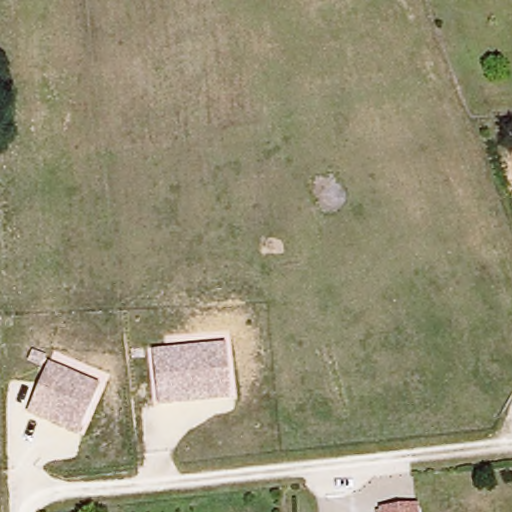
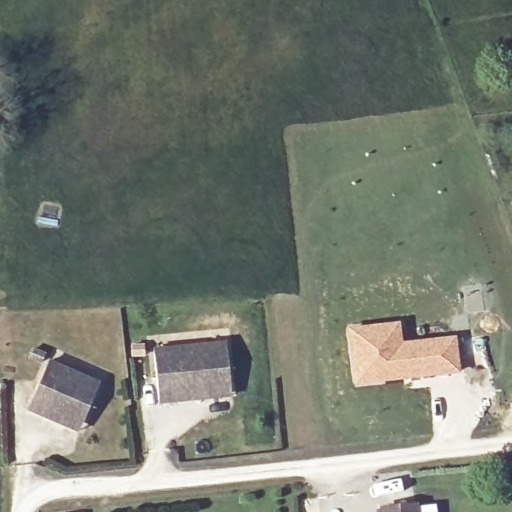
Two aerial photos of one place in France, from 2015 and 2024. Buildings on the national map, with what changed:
new [(400,321),(403,341),(456,335),(461,372),(353,387),(346,325),(400,321)]
unchanged [(225,342),(230,397),(157,405),(151,350),(225,342)]
unchanged [(98,382),(76,433),(27,412),(49,362),(98,382)]
unchanged [(413,506),(413,512),(380,512),(380,509),(413,506)]

